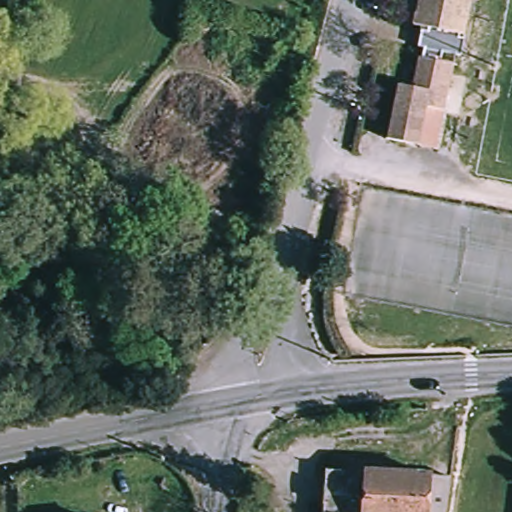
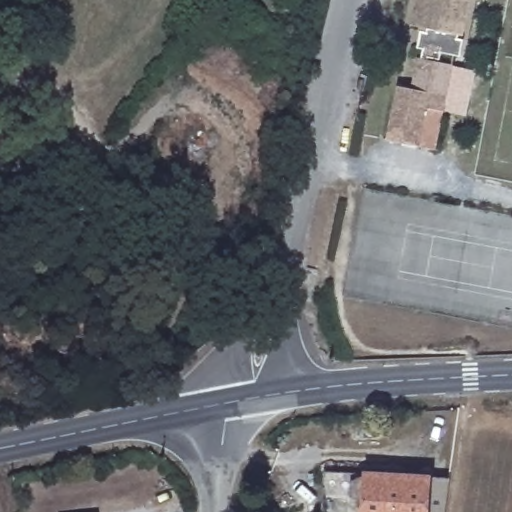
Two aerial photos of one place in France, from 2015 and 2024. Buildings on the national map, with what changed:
unchanged [(385,141),(396,85),(411,88),(418,58),(420,59),(426,29),(412,26),(417,0),(465,0),(464,1),(469,3),(461,35),(457,34),(453,55),(451,65),(434,150),(385,141)]
unchanged [(223,247),(219,238),(228,234),(232,242),(223,247)]
unchanged [(311,471),(435,477),(431,512),(308,512),(311,471)]

